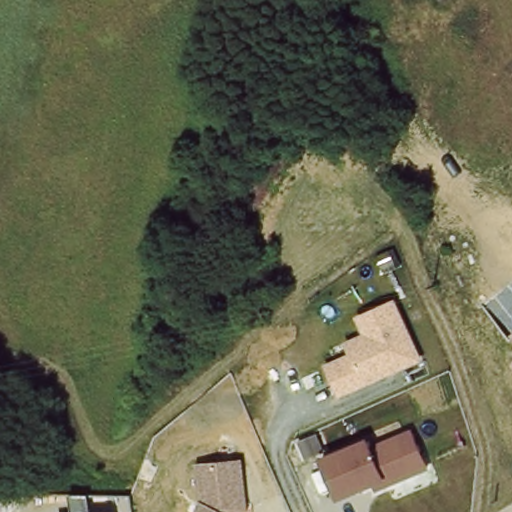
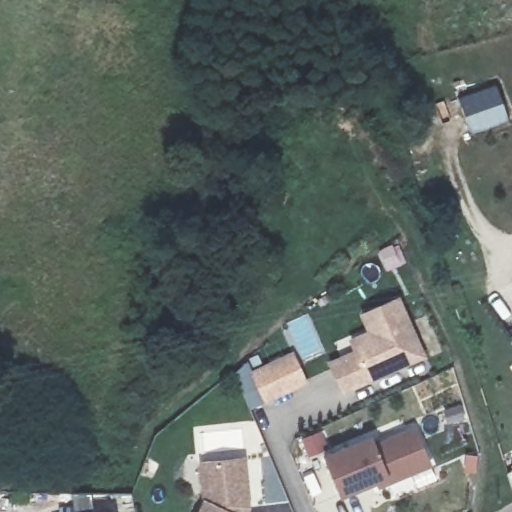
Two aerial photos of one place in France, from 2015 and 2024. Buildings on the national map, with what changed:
new [(498,85),(510,120),(472,133),(460,98),(498,85)]
unchanged [(329,362),(355,351),(350,340),(369,332),(362,313),(400,298),(429,360),(344,395),(329,362)]
new [(295,354),(309,380),(270,401),(256,375),(295,354)]
unchanged [(435,472),(388,489),(388,482),(342,498),(326,456),(376,437),(378,443),(420,428),(435,472)]
unchanged [(253,511),(252,512),(201,512),(206,502),(203,461),(249,457),(253,511)]

